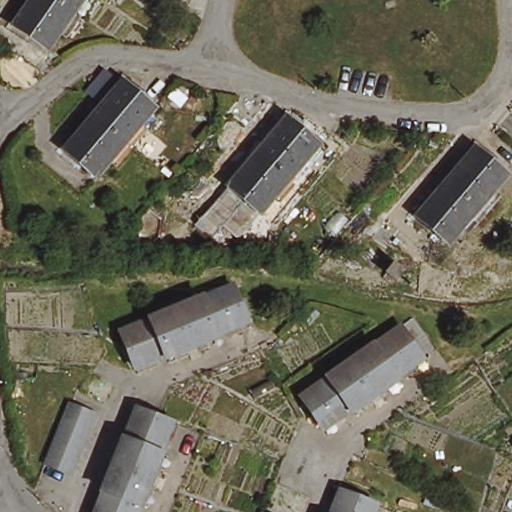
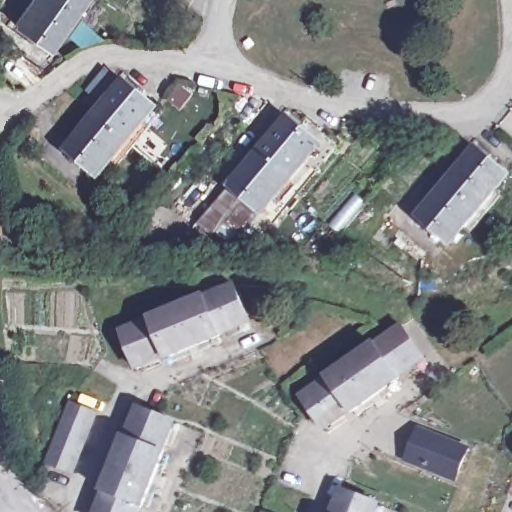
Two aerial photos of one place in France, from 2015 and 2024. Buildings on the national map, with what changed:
unchanged [(33,0),(50,0),(80,22),(65,42),(58,38),(46,53),(13,29),(33,0)]
unchanged [(80,22),(50,0),(90,0),(93,2),(80,22)]
unchanged [(156,107),(141,124),(148,129),(134,145),(95,112),(104,102),(88,89),(94,82),(105,70),(120,84),(124,80),(156,107)]
unchanged [(95,112),(134,145),(114,165),(110,162),(108,161),(96,175),(64,146),(95,112)]
unchanged [(306,160),(313,166),(283,204),(275,198),(264,212),(261,215),(228,186),(286,117),(319,144),(306,160)]
unchanged [(495,191),(501,197),(478,225),(469,234),(463,230),(449,245),(416,216),(477,147),(509,175),(495,191)]
unchanged [(408,279),(399,289),(389,280),(398,270),(408,279)]
unchanged [(118,338),(151,325),(150,323),(201,303),(203,306),(233,296),(248,332),(217,344),(218,347),(166,367),(165,364),(133,375),(118,338)]
unchanged [(378,346),(380,348),(406,331),(428,362),(401,381),(403,383),(357,415),(355,413),(328,431),(306,399),(333,381),(331,378),(378,346)]
unchanged [(69,473),(44,461),(69,401),(96,412),(69,473)]
unchanged [(164,456),(143,508),(139,507),(137,512),(95,512),(103,491),(101,490),(123,439),(125,440),(138,408),(175,423),(161,455),(164,456)]
new [(455,481),(405,460),(419,427),(471,448),(455,481)]
unchanged [(340,485),(349,490),(376,500),(371,512),(330,512),(340,485)]
unchanged [(260,511),(261,512),(260,512),(260,511)]

